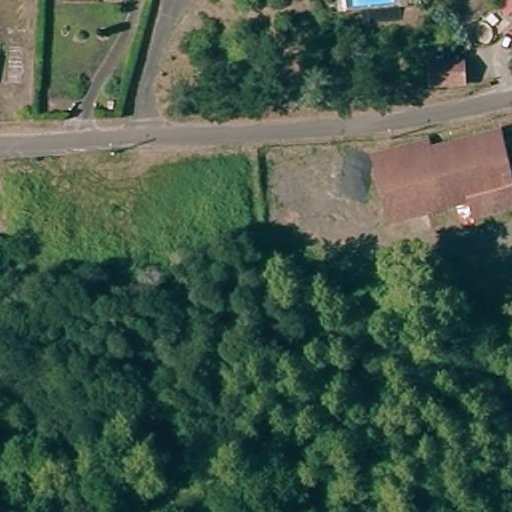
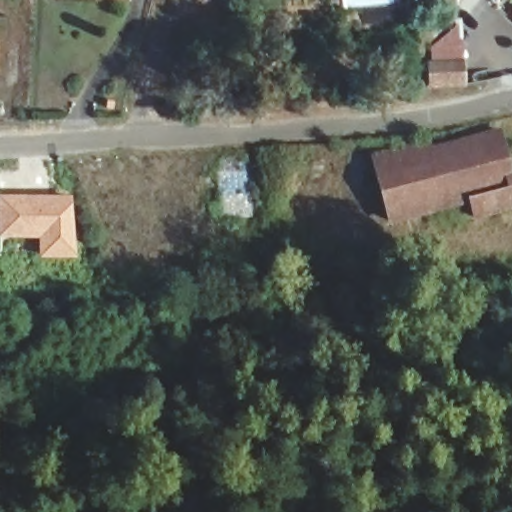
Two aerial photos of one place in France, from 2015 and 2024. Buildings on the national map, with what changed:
unchanged [(497,3),(500,0),(512,0),(512,15),(509,17),(497,3)]
unchanged [(462,86),(427,87),(426,63),(460,62),(462,86)]
unchanged [(512,214),(478,223),(473,206),(393,228),(375,162),(430,147),(432,155),(501,137),(512,178),(512,214)]
new [(73,195),(76,257),(38,258),(37,238),(0,238),(0,194),(73,195)]

